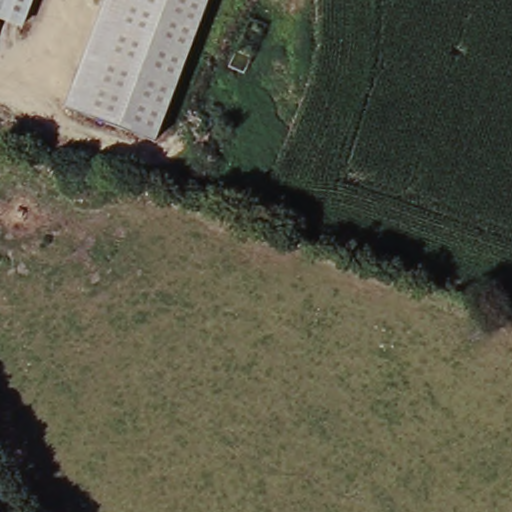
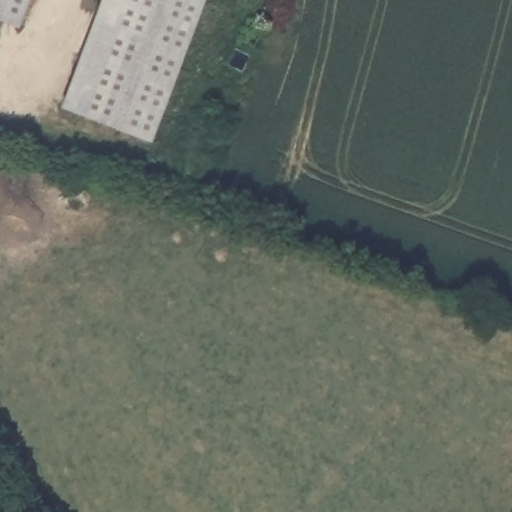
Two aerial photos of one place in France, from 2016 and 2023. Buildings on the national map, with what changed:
unchanged [(24,32),(0,24),(0,0),(35,0),(24,32)]
unchanged [(153,145),(60,111),(103,0),(209,0),(153,145)]

